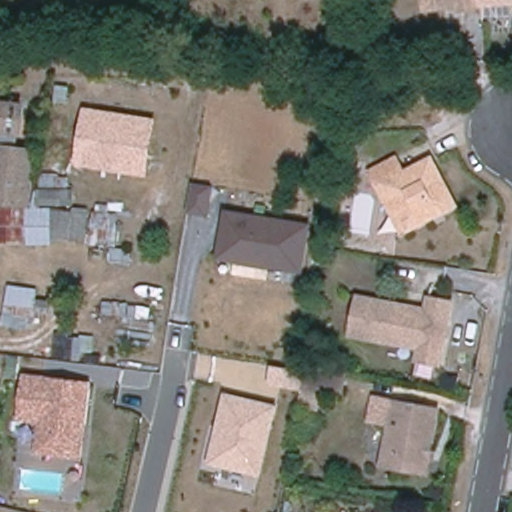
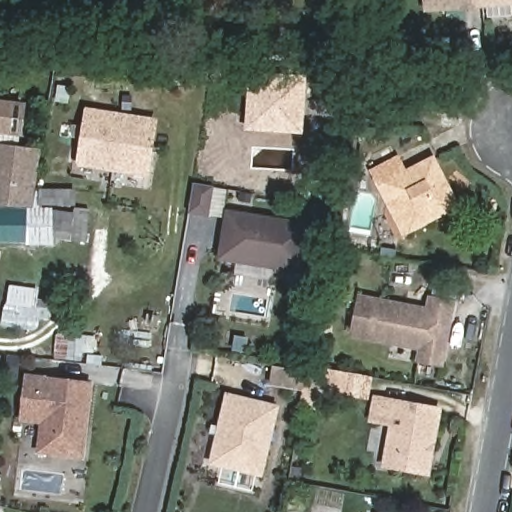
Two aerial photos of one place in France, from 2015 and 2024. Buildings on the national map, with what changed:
unchanged [(427,11),(426,0),(512,0),(512,5),(427,11)]
new [(247,74),(306,76),(303,134),(245,130),(247,74)]
unchanged [(39,148),(31,200),(0,199),(0,98),(25,101),(19,145),(39,148)]
unchanged [(148,177),(74,165),(83,108),(157,119),(148,177)]
unchanged [(386,193),(378,178),(402,165),(410,180),(436,167),(439,169),(460,210),(416,233),(408,237),(386,193)]
unchanged [(37,200),(37,184),(76,185),(76,202),(37,200)]
new [(197,184),(216,188),(211,217),(192,214),(197,184)]
unchanged [(51,237),(0,235),(0,206),(51,207),(51,237)]
unchanged [(87,235),(59,234),(61,207),(89,209),(87,235)]
unchanged [(217,259),(226,209),(311,224),(302,274),(217,259)]
unchanged [(38,292),(37,301),(51,303),(49,319),(32,316),(31,324),(16,322),(18,305),(9,304),(11,287),(38,292)]
unchanged [(428,313),(430,301),(452,304),(441,366),(419,362),(421,350),(353,338),(360,300),(428,313)]
unchanged [(347,378),(342,398),(303,391),(307,371),(347,378)]
unchanged [(19,421),(25,373),(92,382),(84,458),(35,453),(40,423),(19,421)]
unchanged [(261,477),(207,464),(225,392),(279,405),(261,477)]
unchanged [(440,410),(428,475),(401,469),(405,449),(388,446),(397,403),(440,410)]

